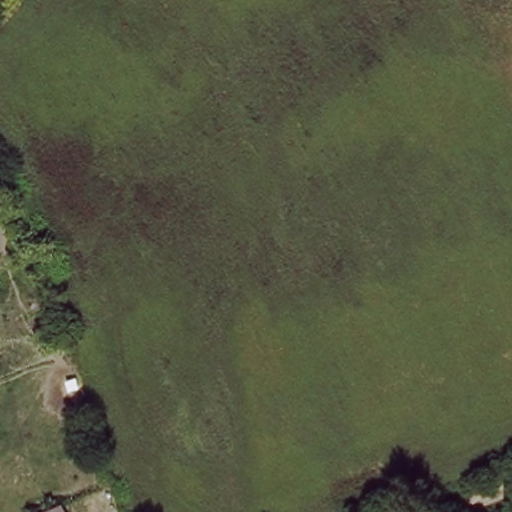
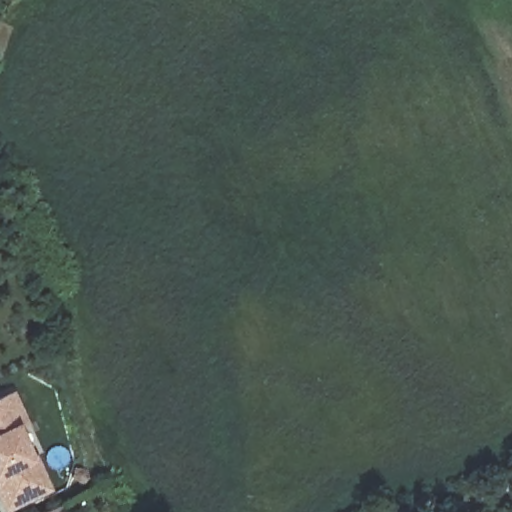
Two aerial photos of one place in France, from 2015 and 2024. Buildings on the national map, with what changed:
new [(30,423),(18,427),(33,457),(36,455),(52,488),(5,512),(3,512),(0,506),(0,396),(13,391),(30,423)]

